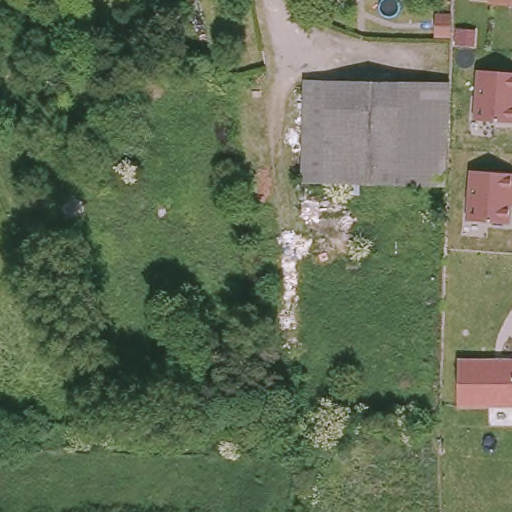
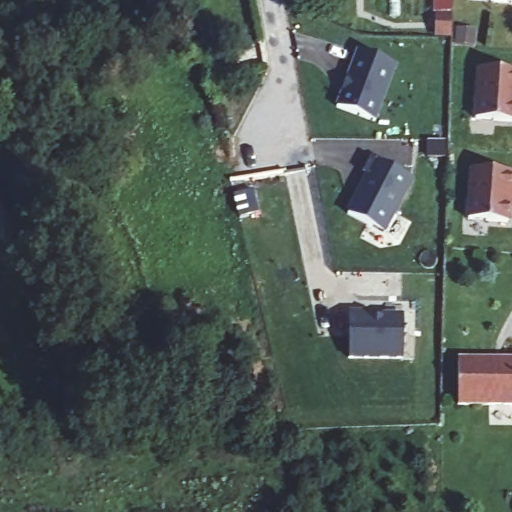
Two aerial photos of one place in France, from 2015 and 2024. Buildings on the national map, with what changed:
unchanged [(490,0),(512,0),(512,4),(490,2),(490,0)]
unchanged [(452,15),(452,35),(437,35),(437,15),(452,15)]
new [(377,122),(336,107),(357,51),(397,66),(377,122)]
unchanged [(512,72),(512,120),(474,120),(476,70),(512,72)]
demolished [(450,80),(448,181),(299,179),(302,76),(450,80)]
new [(412,179),(384,233),(348,215),(368,176),(362,173),(370,157),(412,179)]
unchanged [(512,173),(512,206),(509,206),(509,222),(467,219),(469,170),(512,173)]
new [(349,361),(350,311),(370,311),(370,323),(382,323),(382,315),(404,315),(403,362),(349,361)]
unchanged [(512,406),(458,405),(459,360),(512,360),(512,406)]

